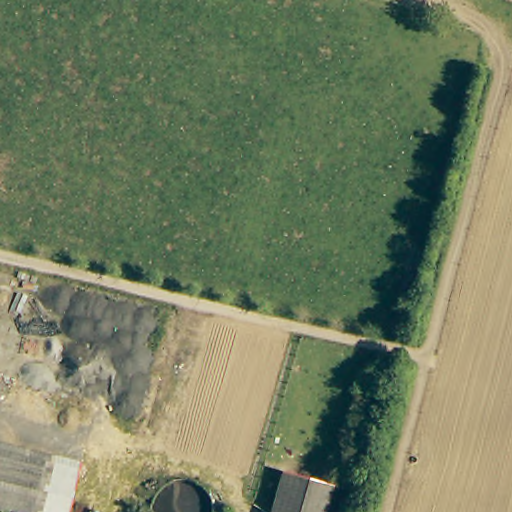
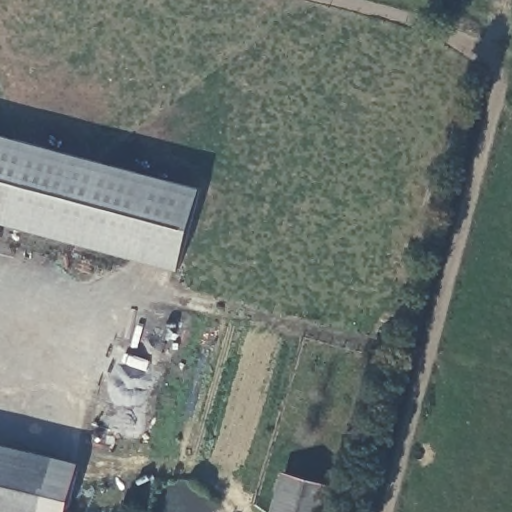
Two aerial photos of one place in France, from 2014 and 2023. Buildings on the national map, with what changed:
new [(0,222),(0,132),(203,186),(180,270),(0,222)]
new [(0,510),(0,443),(80,462),(68,512),(7,512),(0,510)]
unchanged [(332,485),(325,512),(273,512),(285,472),(332,485)]

